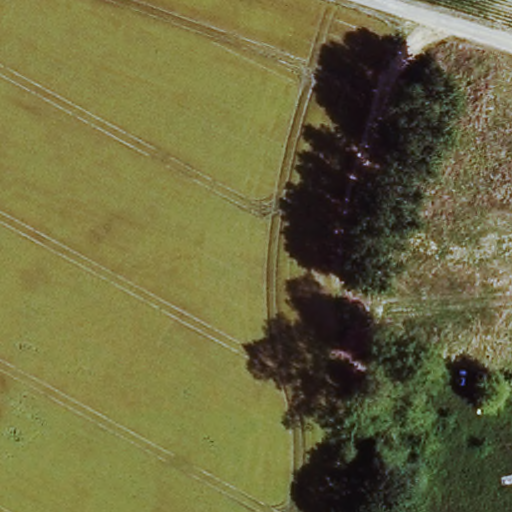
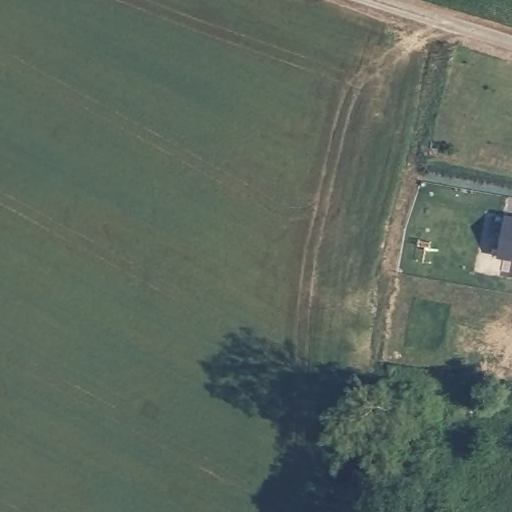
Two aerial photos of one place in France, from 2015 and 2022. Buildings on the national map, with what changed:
new [(512,215),(512,260),(498,257),(506,214),(512,215)]

